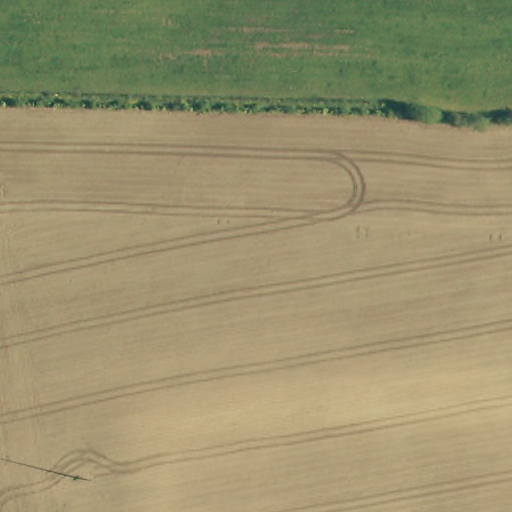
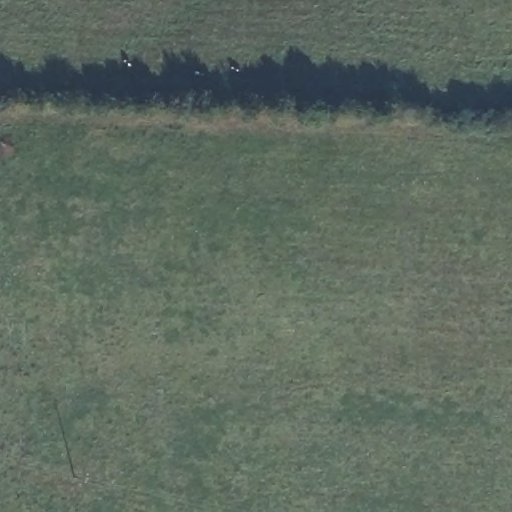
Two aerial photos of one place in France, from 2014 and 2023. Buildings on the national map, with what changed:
[]

